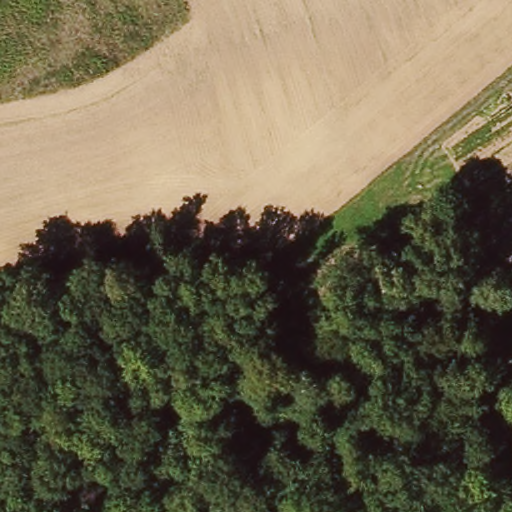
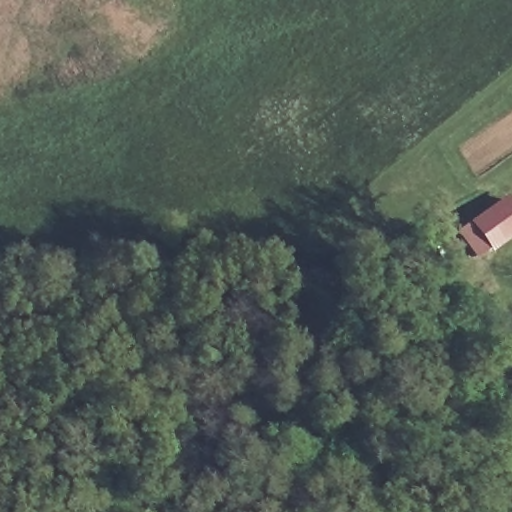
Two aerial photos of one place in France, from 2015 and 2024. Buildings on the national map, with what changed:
new [(488,255),(467,224),(505,197),(512,206),(512,239),(488,255)]

